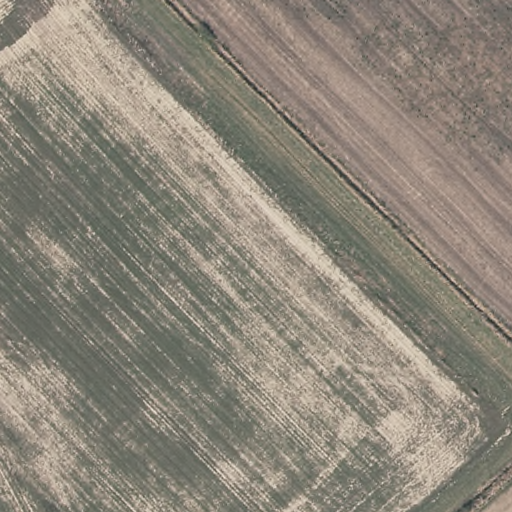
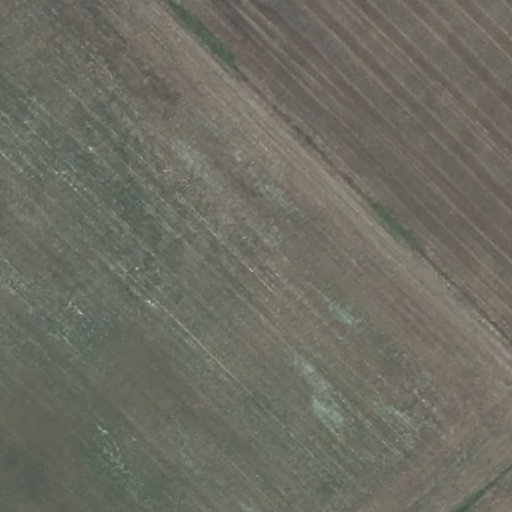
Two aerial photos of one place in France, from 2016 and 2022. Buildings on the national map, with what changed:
[]

